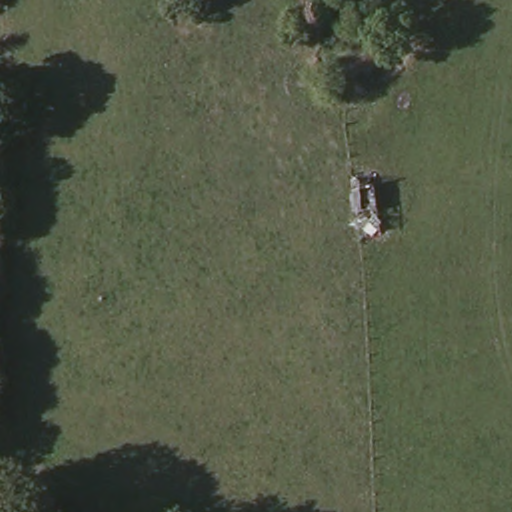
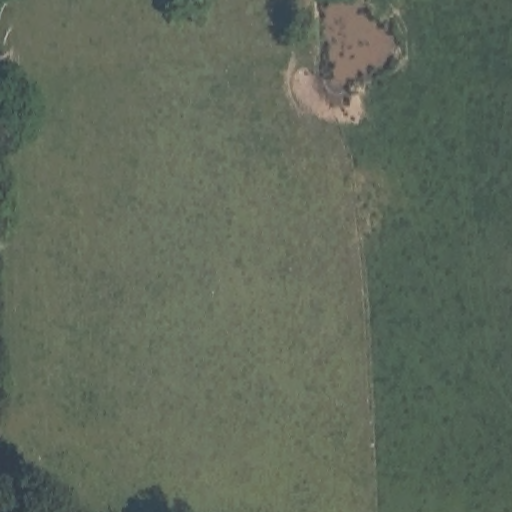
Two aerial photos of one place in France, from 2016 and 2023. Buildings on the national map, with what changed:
unchanged [(351,173),(372,169),(381,230),(359,234),(357,229),(351,173)]

